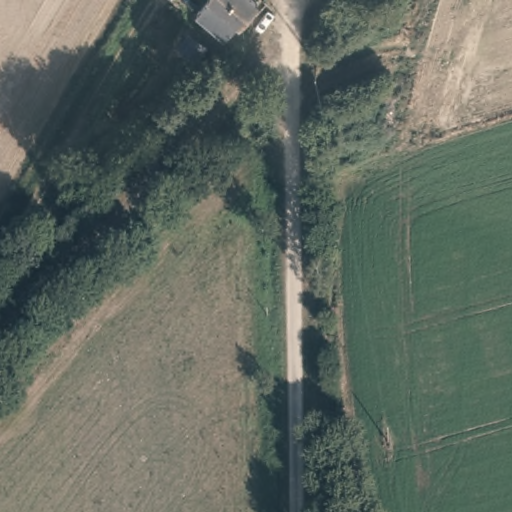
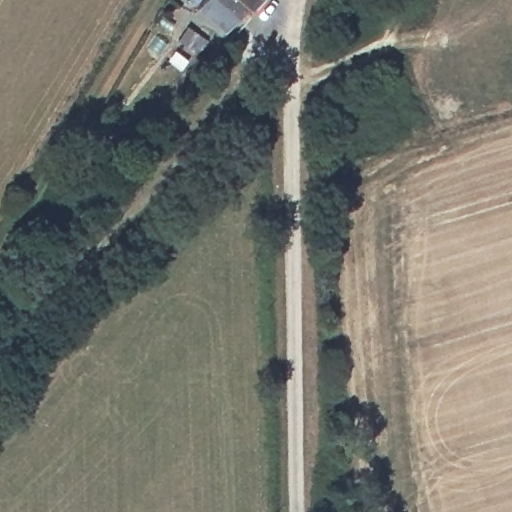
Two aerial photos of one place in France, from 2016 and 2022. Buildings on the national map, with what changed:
unchanged [(245,10),(231,25),(210,5),(214,0),(259,0),(248,12),(245,10)]

